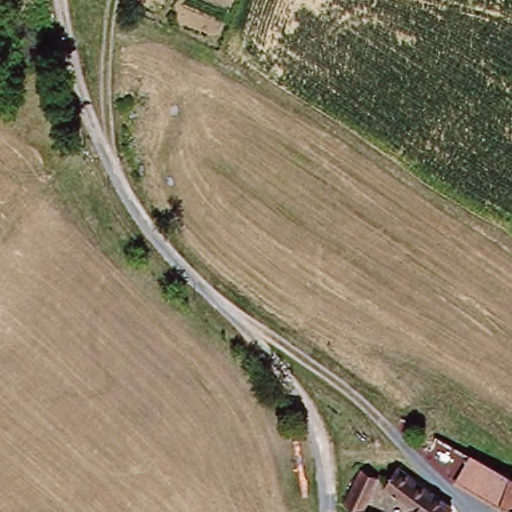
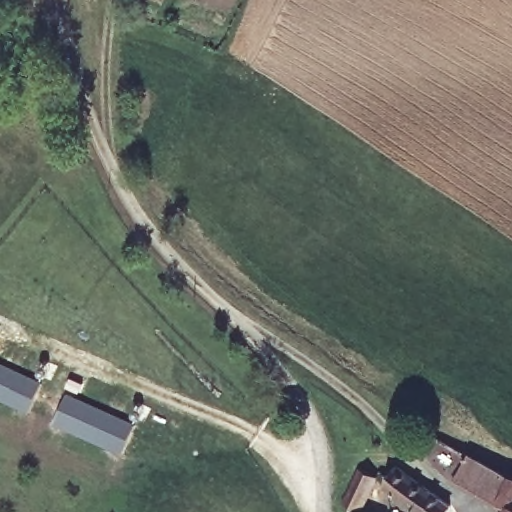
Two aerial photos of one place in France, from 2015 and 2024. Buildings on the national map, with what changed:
new [(32,411),(0,398),(0,362),(44,381),(32,411)]
new [(123,453),(55,423),(68,392),(137,423),(123,453)]
unchanged [(455,480),(470,450),(512,473),(512,493),(509,500),(455,480)]
unchanged [(377,467),(357,503),(339,492),(360,457),(377,467)]
unchanged [(420,502),(392,482),(405,465),(429,483),(455,502),(449,512),(413,512),(412,512),(420,502)]
unchanged [(512,493),(512,501),(509,500),(512,493)]
unchanged [(372,512),(351,512),(357,503),(372,512)]
unchanged [(512,512),(511,512),(512,509),(512,512)]

